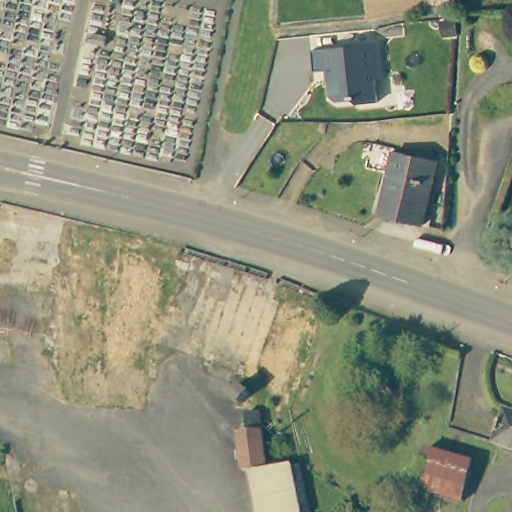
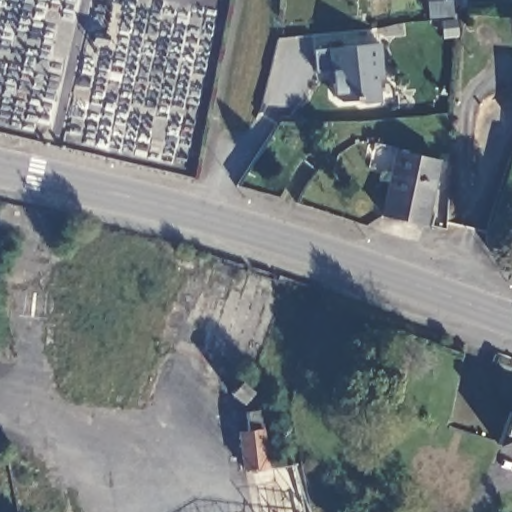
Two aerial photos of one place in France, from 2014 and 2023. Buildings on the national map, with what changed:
unchanged [(384,75),(377,76),(380,99),(363,101),(358,98),(341,100),(335,95),(332,69),(316,71),(314,48),(380,41),(384,75)]
unchanged [(377,226),(387,182),(392,161),(436,172),(433,185),(421,236),(377,226)]
unchanged [(247,393),(238,405),(227,396),(237,385),(247,393)]
unchanged [(504,427),(509,411),(512,412),(512,449),(498,444),(504,427)]
unchanged [(246,471),(240,434),(250,432),(247,415),(261,413),(269,468),(246,471)]
demolished [(465,501),(416,488),(427,449),(475,463),(465,501)]
unchanged [(286,512),(276,469),(302,464),(311,512),(286,512)]
unchanged [(276,469),(286,512),(261,512),(254,473),(276,469)]

